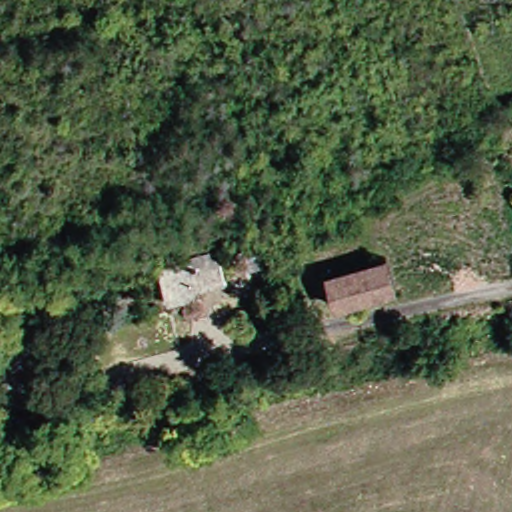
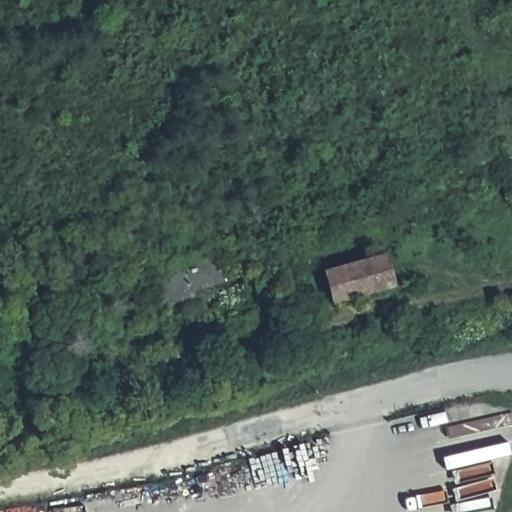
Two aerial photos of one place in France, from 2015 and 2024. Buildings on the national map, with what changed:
unchanged [(383,259),(392,288),(332,303),(326,274),(383,259)]
unchanged [(161,282),(158,276),(166,274),(215,261),(217,267),(221,281),(179,296),(167,300),(161,282)]
unchanged [(54,298),(61,324),(15,338),(8,310),(54,298)]

